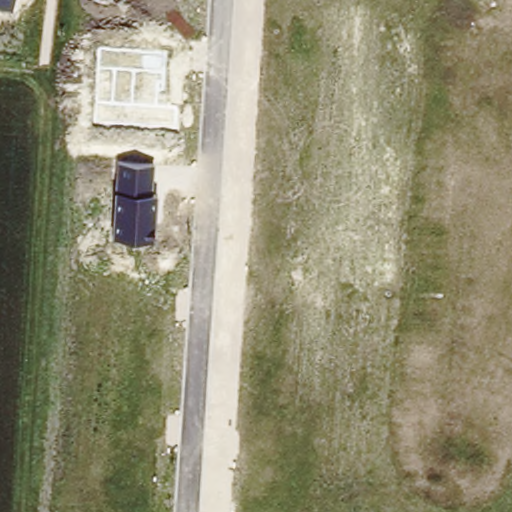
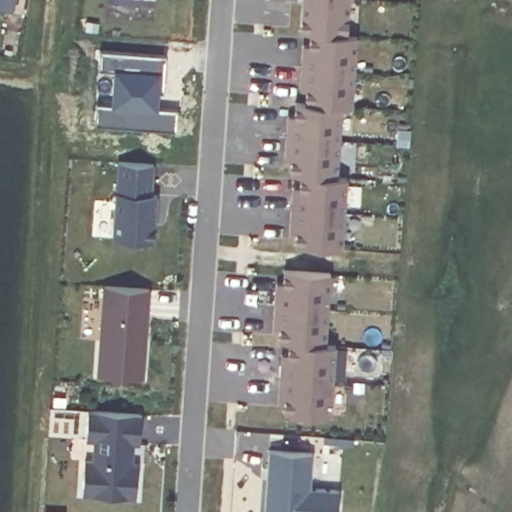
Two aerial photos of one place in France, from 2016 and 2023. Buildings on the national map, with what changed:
unchanged [(0,7),(0,0),(14,0),(13,10),(0,7)]
new [(357,35),(352,106),(340,105),(337,177),(345,177),(340,249),(292,246),(292,231),(288,231),(292,187),(295,187),(295,175),(287,174),(288,161),(283,161),(286,114),(292,114),(293,101),(304,101),(305,90),(298,89),(301,44),(307,45),(307,33),(299,32),(301,0),(351,0),(348,34),(357,35)]
unchanged [(95,101),(105,101),(107,71),(97,71),(98,49),(165,53),(162,91),(161,91),(160,105),(177,106),(175,130),(94,125),(95,101)]
unchanged [(117,159),(154,163),(152,193),(158,193),(155,240),(112,239),(117,159)]
new [(279,400),(275,400),(277,354),(285,353),(285,342),(275,341),(277,330),(271,329),(275,281),(280,281),(280,269),(330,272),(325,343),(334,343),(330,416),(278,412),(279,400)]
new [(142,380),(97,377),(103,288),(148,291),(145,334),(145,339),(142,380)]
new [(92,463),(94,441),(85,441),(87,412),(141,416),(139,444),(133,444),(132,465),(137,466),(135,500),(82,496),(84,462),(92,463)]
new [(267,450),(310,452),(309,488),(338,490),(337,512),(263,512),(267,450)]

